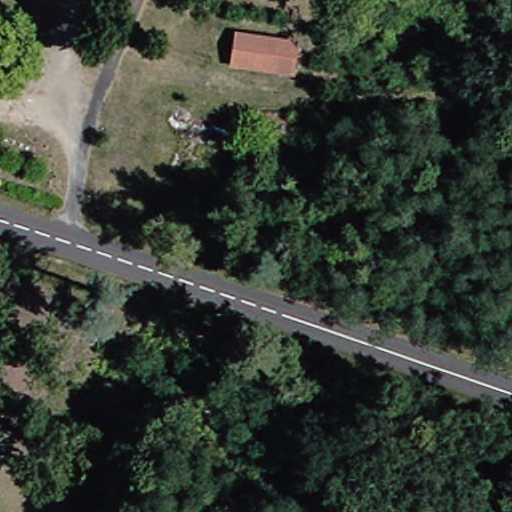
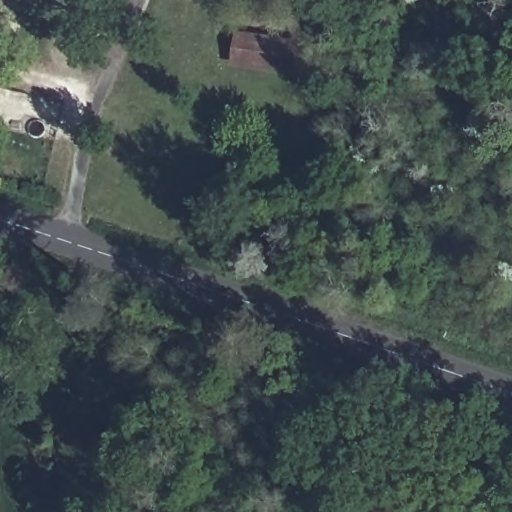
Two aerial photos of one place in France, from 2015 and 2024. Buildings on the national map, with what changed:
unchanged [(234,31),(296,40),(294,75),(231,66),(234,31)]

